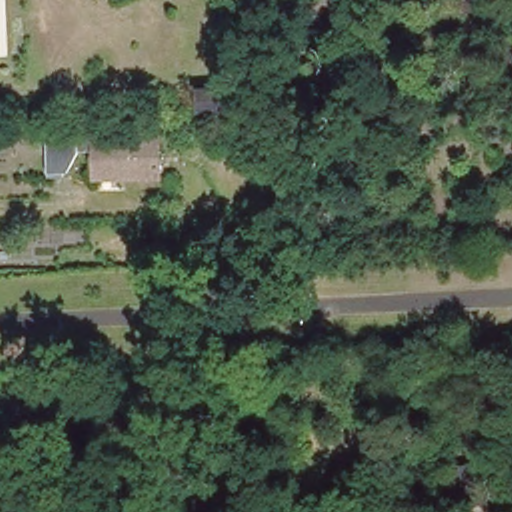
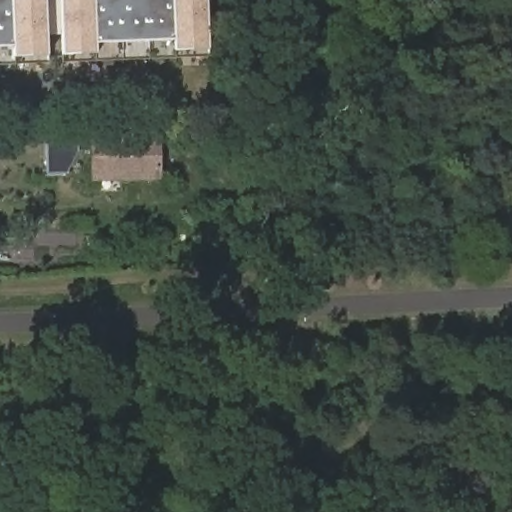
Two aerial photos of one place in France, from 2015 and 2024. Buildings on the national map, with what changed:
new [(14,47),(0,47),(0,0),(48,0),(50,61),(12,61),(14,47)]
new [(204,0),(208,51),(174,52),(172,41),(95,43),(95,57),(62,57),(60,0),(204,0)]
unchanged [(90,174),(87,139),(152,135),(155,177),(117,179),(90,181),(90,174)]
new [(70,149),(71,172),(47,172),(46,149),(70,149)]
unchanged [(205,220),(233,219),(234,239),(206,240),(205,220)]

